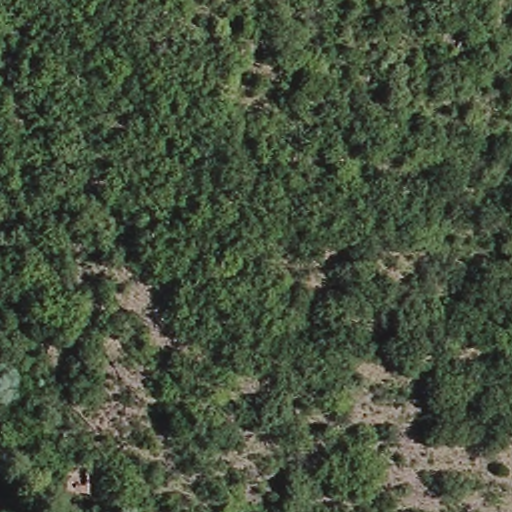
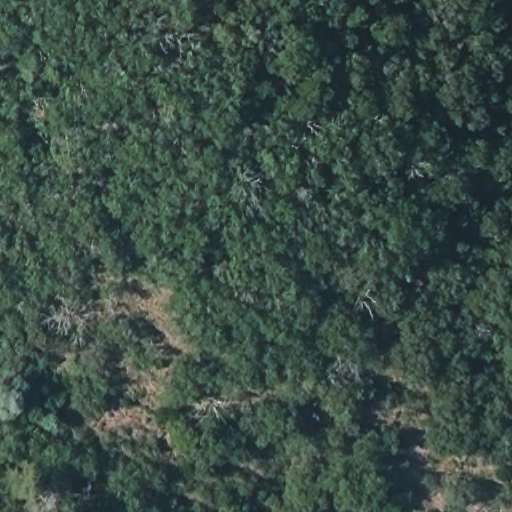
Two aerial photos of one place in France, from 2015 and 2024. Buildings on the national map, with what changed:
unchanged [(92,492),(69,496),(65,466),(90,463),(92,492)]

